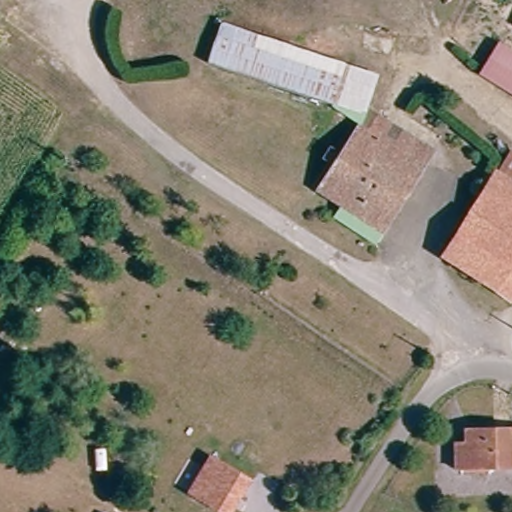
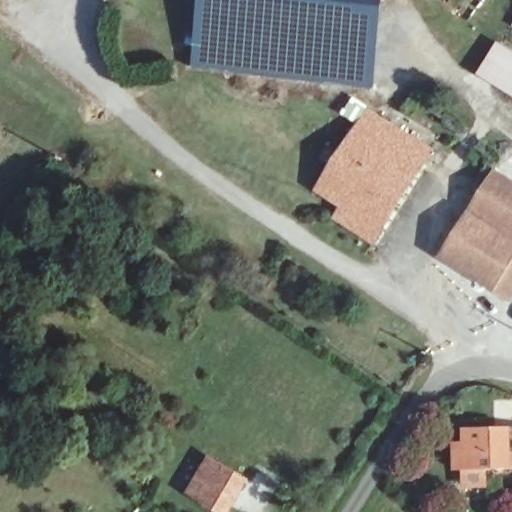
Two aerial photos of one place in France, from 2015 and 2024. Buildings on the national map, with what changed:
new [(375,88),(193,67),(200,0),(386,0),(375,88)]
unchanged [(512,52),(512,94),(478,73),(497,43),(512,52)]
unchanged [(338,225),(344,215),(320,202),(360,125),(367,112),(368,113),(431,146),(385,236),(380,247),(338,225)]
unchanged [(510,296),(493,285),(442,252),(470,209),(508,148),(512,150),(512,292),(510,296)]
unchanged [(454,446),(465,446),(465,429),(508,428),(512,428),(512,469),(509,470),(455,471),(454,446)]
unchanged [(200,512),(182,501),(211,456),(247,479),(227,512),(200,512)]

